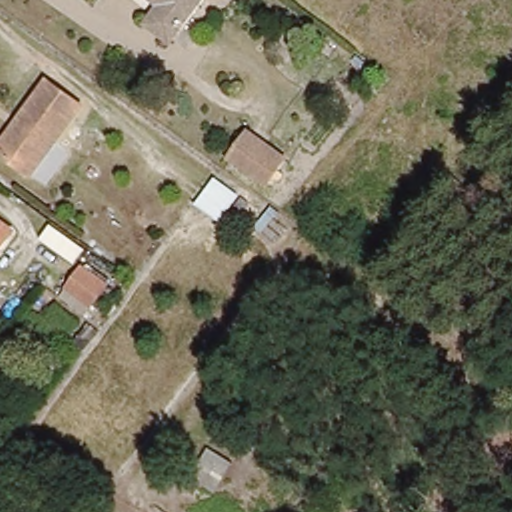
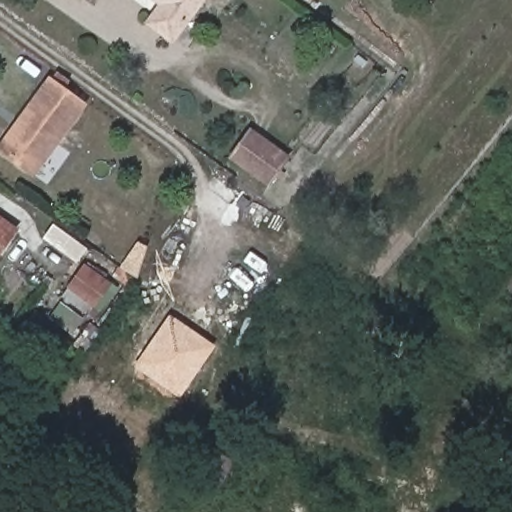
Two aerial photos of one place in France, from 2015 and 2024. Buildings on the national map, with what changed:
unchanged [(143,19),(154,5),(148,0),(197,0),(169,37),(143,19)]
unchanged [(23,118),(18,114),(46,78),(81,103),(30,174),(0,151),(0,148),(23,118)]
unchanged [(246,130),(285,159),(267,184),(229,153),(246,130)]
unchanged [(241,193),(220,219),(196,203),(214,174),(241,193)]
unchanged [(84,267),(109,285),(94,304),(70,286),(84,267)]
new [(179,398),(133,367),(168,316),(215,346),(179,398)]

